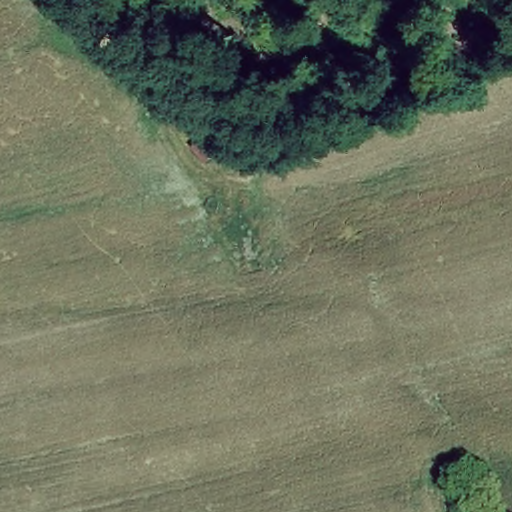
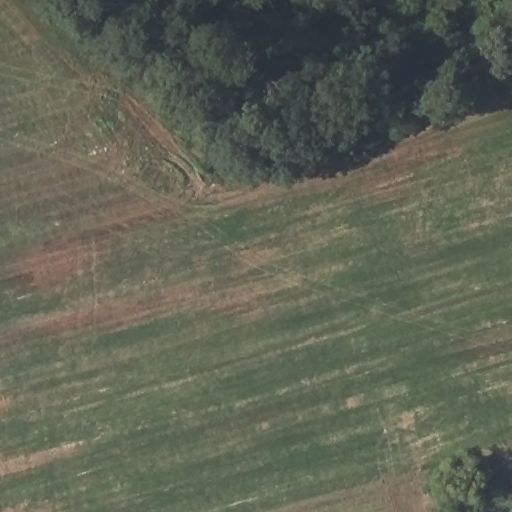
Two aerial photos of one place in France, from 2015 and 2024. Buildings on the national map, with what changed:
unchanged [(217,152),(205,164),(188,148),(201,136),(217,152)]

